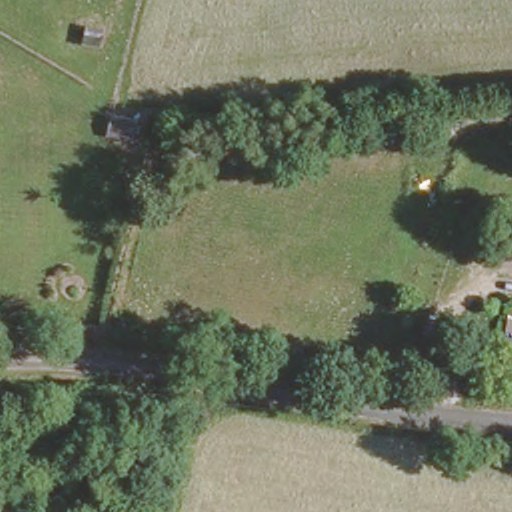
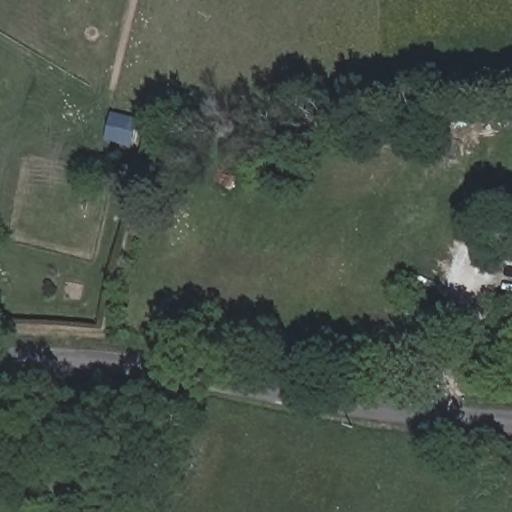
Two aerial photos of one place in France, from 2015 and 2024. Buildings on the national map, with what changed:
unchanged [(76,500),(45,498),(46,481),(77,483),(76,500)]

